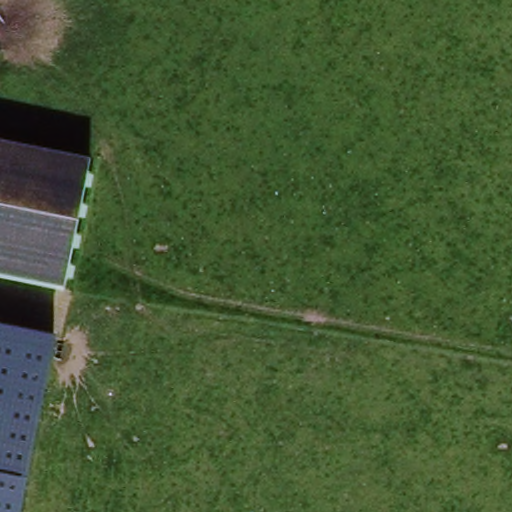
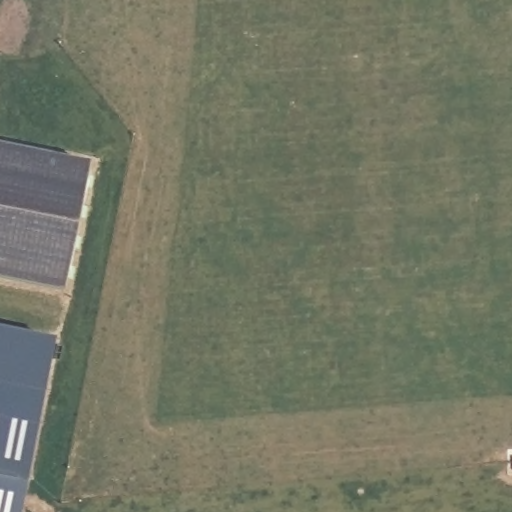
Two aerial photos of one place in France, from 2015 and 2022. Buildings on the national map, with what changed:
unchanged [(92,171),(64,296),(0,280),(0,150),(92,171)]
unchanged [(55,340),(20,512),(0,512),(0,329),(55,340)]

